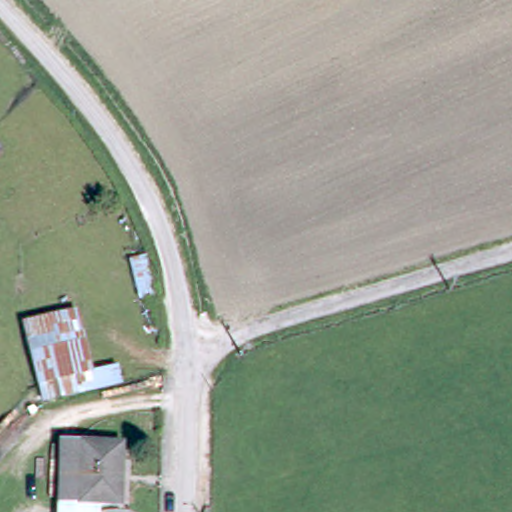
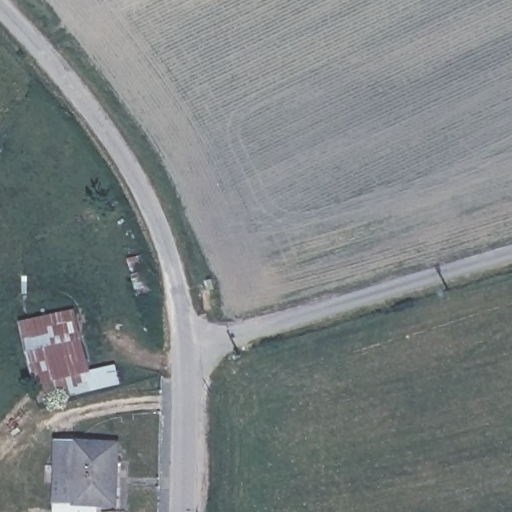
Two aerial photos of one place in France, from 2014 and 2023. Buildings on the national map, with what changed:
unchanged [(154,283),(155,298),(143,302),(132,265),(145,262),(154,283)]
unchanged [(16,328),(67,312),(76,342),(25,357),(16,328)]
unchanged [(115,382),(90,390),(50,402),(40,405),(25,357),(76,342),(86,374),(110,367),(115,382)]
unchanged [(59,451),(117,451),(117,511),(95,510),(59,509),(59,451)]
unchanged [(95,510),(95,512),(59,512),(59,509),(95,510)]

